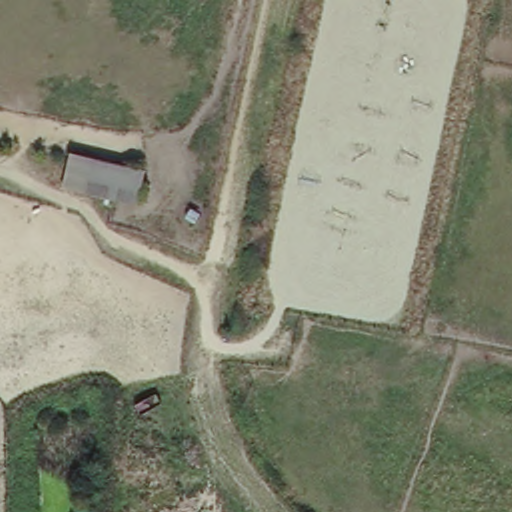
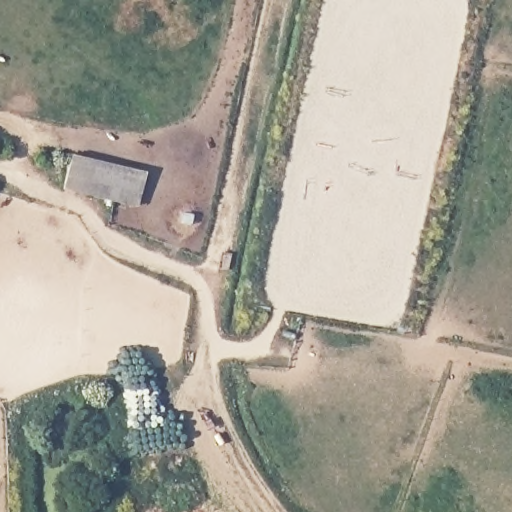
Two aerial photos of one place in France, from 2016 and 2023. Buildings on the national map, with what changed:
unchanged [(150,172),(141,210),(66,191),(74,154),(150,172)]

